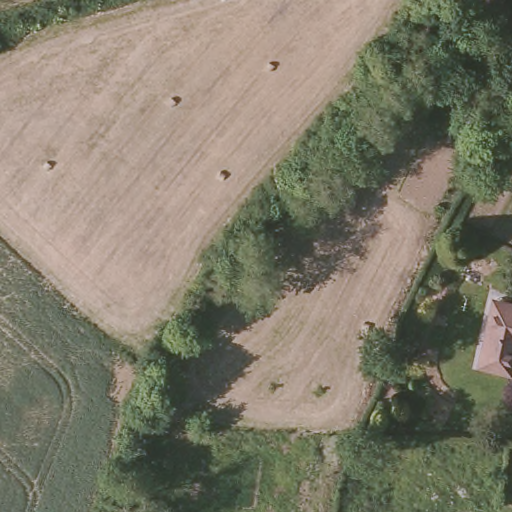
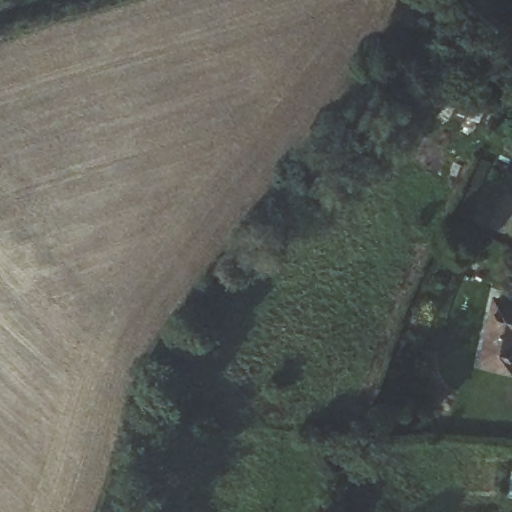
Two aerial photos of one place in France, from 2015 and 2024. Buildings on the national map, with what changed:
unchanged [(477,368),(490,305),(512,310),(512,345),(505,373),(477,368)]

